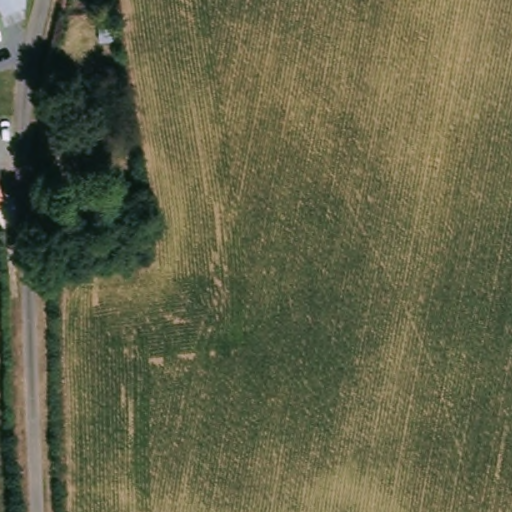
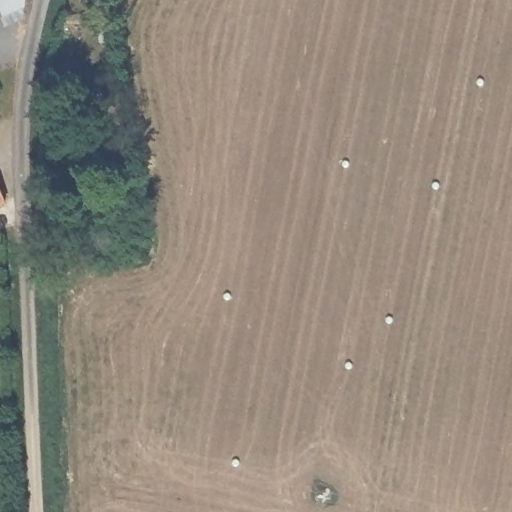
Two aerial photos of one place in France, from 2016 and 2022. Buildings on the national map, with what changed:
unchanged [(12,28),(0,35),(0,0),(22,0),(22,7),(11,13),(12,28)]
unchanged [(9,204),(0,207),(0,177),(9,204)]

